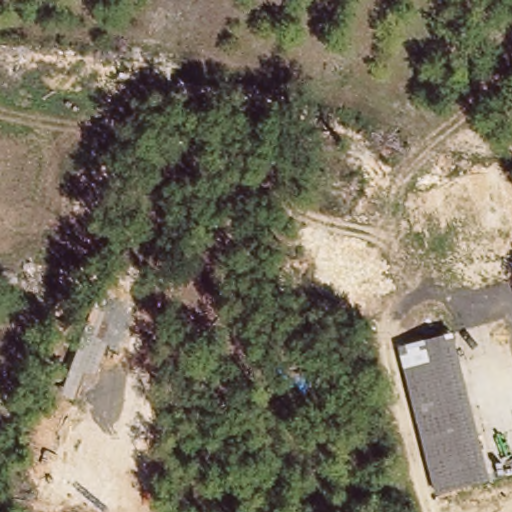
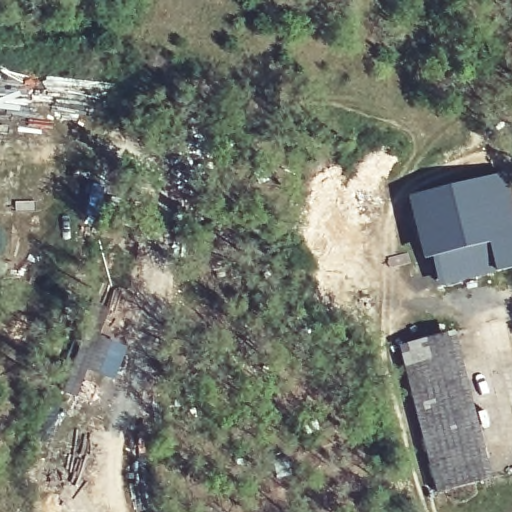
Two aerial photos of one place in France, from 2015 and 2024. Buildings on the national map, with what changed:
new [(512,269),(439,290),(431,258),(424,261),(407,197),(505,171),(512,200),(512,269)]
new [(111,381),(86,373),(77,400),(58,393),(88,303),(105,310),(95,338),(125,350),(111,381)]
unchanged [(490,480),(437,495),(399,345),(454,331),(490,480)]

